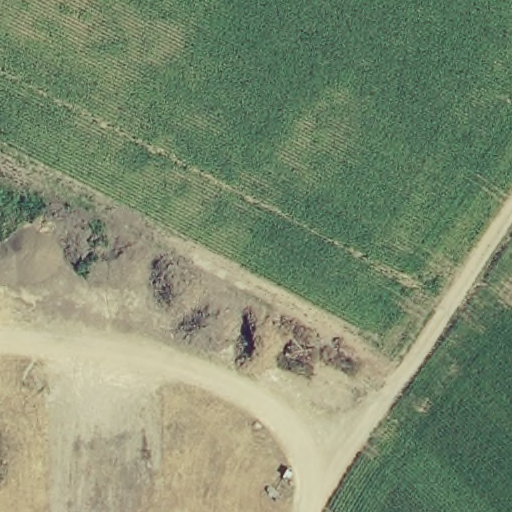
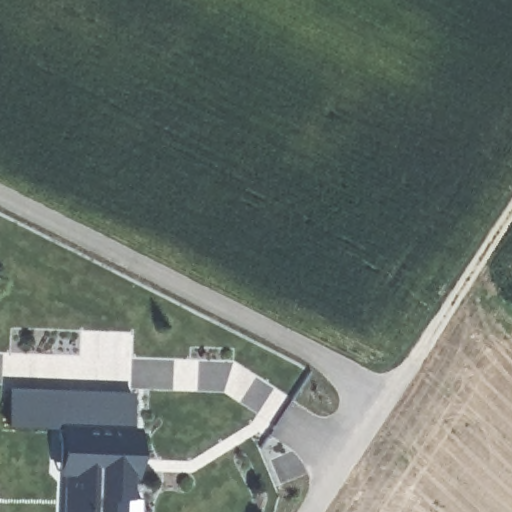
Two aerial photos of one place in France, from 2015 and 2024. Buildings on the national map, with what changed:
new [(137,391),(136,429),(9,429),(10,388),(137,391)]
new [(142,481),(138,481),(135,503),(130,504),(130,512),(65,512),(66,479),(61,478),(63,434),(143,436),(142,481)]

